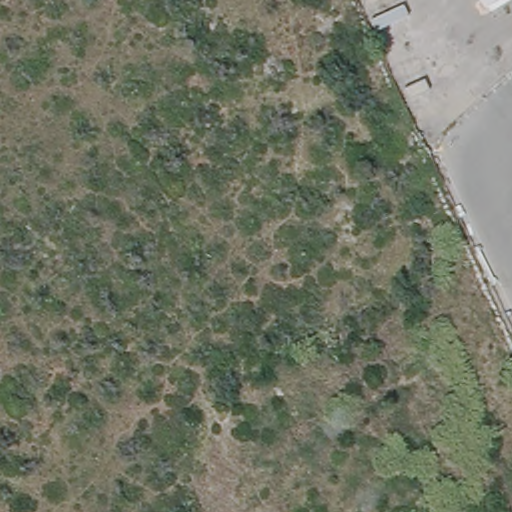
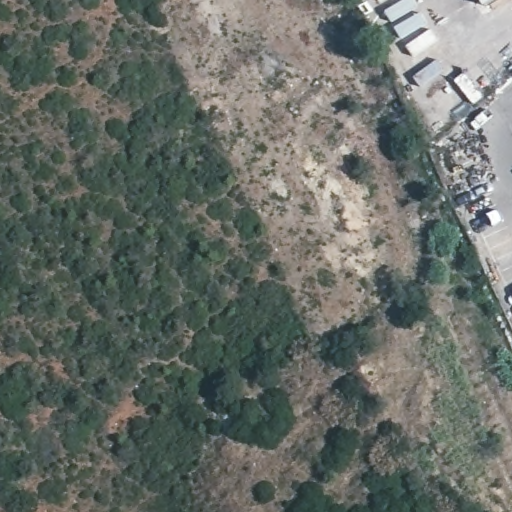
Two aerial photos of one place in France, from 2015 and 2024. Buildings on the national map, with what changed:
unchanged [(477,0),(495,0),(481,8),(477,0)]

